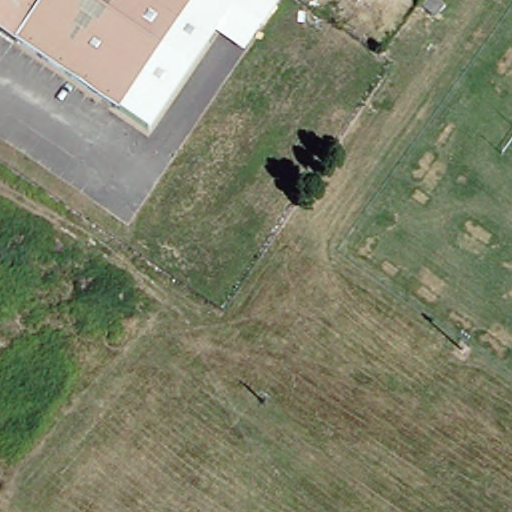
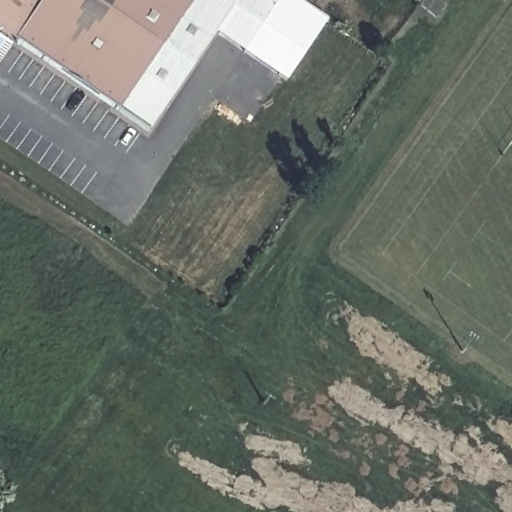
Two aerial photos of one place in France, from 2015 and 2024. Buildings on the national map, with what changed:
unchanged [(9,36),(0,30),(0,0),(186,0),(114,107),(9,36)]
unchanged [(215,34),(150,131),(114,107),(186,0),(278,0),(242,53),(215,34)]
new [(286,81),(242,53),(278,0),(303,0),(329,19),(286,81)]

